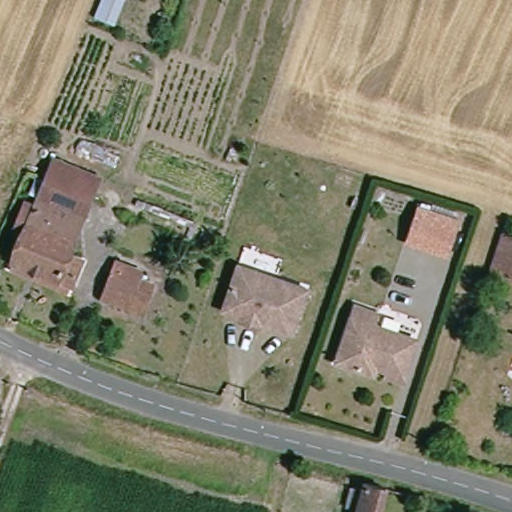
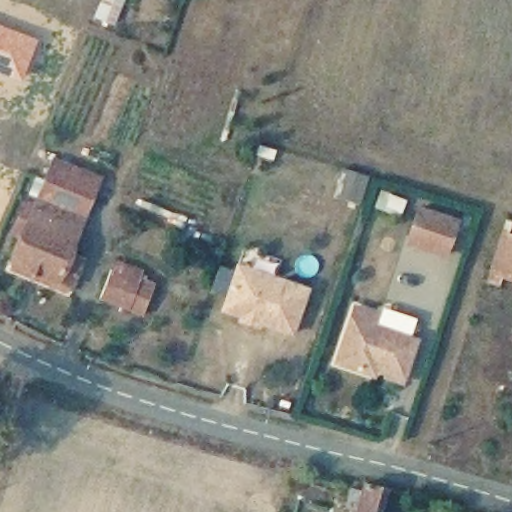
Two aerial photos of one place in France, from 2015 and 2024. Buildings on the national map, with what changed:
unchanged [(113,24),(94,17),(101,0),(123,0),(113,24)]
new [(22,81),(0,73),(0,24),(38,39),(22,81)]
unchanged [(36,198),(43,180),(50,164),(51,160),(98,179),(97,182),(90,199),(83,217),(36,198)]
unchanged [(8,269),(10,263),(23,231),(13,227),(24,202),(33,206),(79,225),(67,255),(81,260),(71,286),(67,285),(64,292),(8,269)]
unchanged [(404,242),(415,209),(453,221),(442,255),(404,242)]
unchanged [(506,278),(489,272),(501,234),(512,237),(512,280),(506,278)]
unchanged [(98,298),(110,268),(112,261),(141,272),(138,278),(154,285),(142,315),(98,298)]
unchanged [(238,321),(239,316),(221,310),(223,303),(233,275),(236,265),(274,278),(306,290),(291,335),(259,323),(258,327),(238,321)]
unchanged [(385,378),(386,372),(375,368),(373,376),(334,363),(354,306),(376,313),(373,325),(416,340),(403,378),(401,383),(385,378)]
unchanged [(344,507),(349,490),(361,492),(363,485),(381,490),(375,512),(355,512),(356,510),(344,507)]

